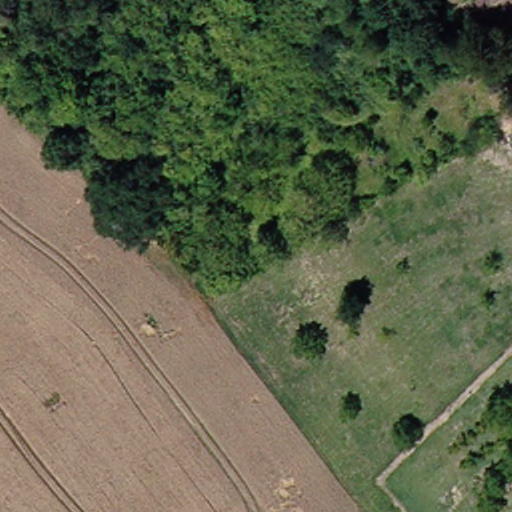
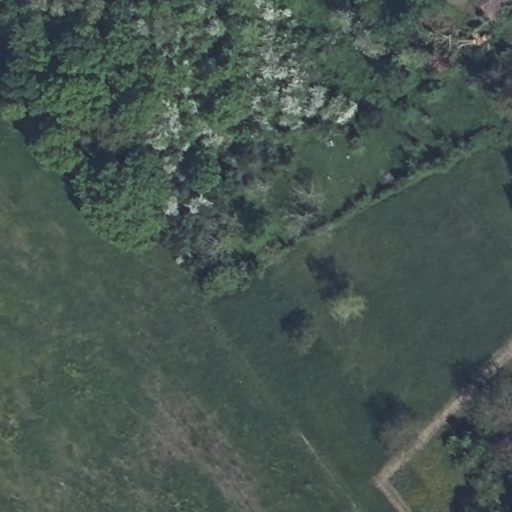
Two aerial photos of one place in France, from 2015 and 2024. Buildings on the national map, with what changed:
unchanged [(476,0),(509,0),(489,16),(476,0)]

